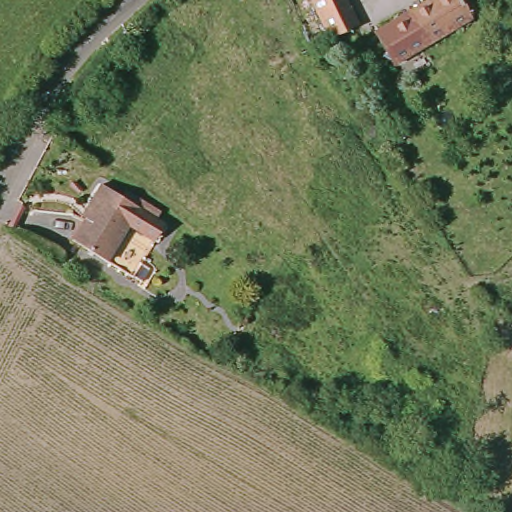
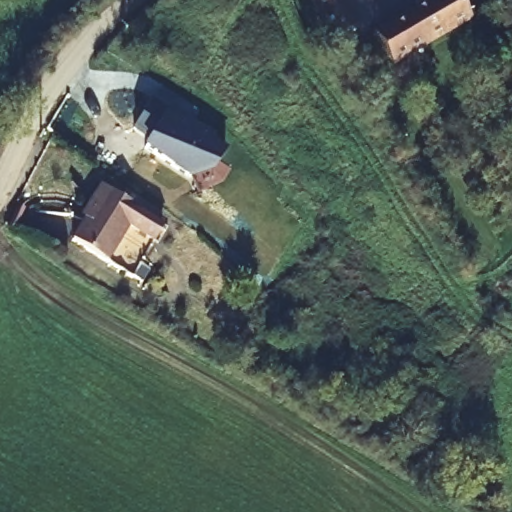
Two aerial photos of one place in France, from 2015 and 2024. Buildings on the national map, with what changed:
unchanged [(360,16),(332,28),(319,0),(353,0),(360,16)]
unchanged [(385,19),(420,0),(442,0),(454,22),(447,25),(450,30),(404,55),(385,19)]
new [(227,149),(217,164),(197,176),(177,174),(142,148),(147,136),(132,127),(149,101),(222,148),(227,149)]
unchanged [(67,236),(87,201),(80,196),(92,178),(154,216),(144,232),(120,218),(97,256),(67,236)]

